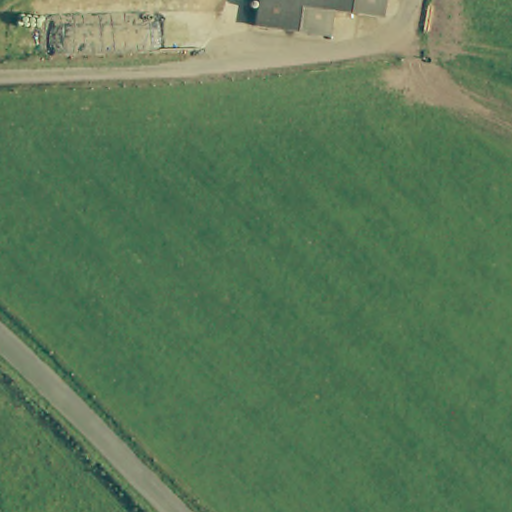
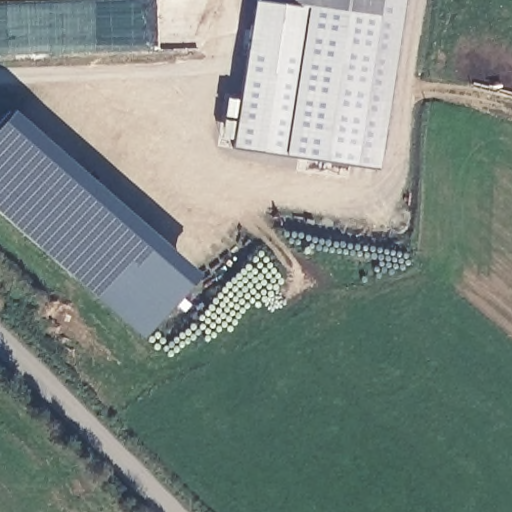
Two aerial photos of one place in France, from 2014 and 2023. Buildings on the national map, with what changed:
new [(322,35),(325,9),(347,12),(372,16),(374,0),(404,0),(379,169),(234,147),(250,24),(322,35)]
unchanged [(325,9),(322,35),(246,24),(250,0),(350,0),(347,12),(325,9)]
unchanged [(372,16),(347,12),(350,0),(374,0),(372,16)]
new [(0,214),(0,121),(11,110),(199,274),(146,339),(0,214)]

